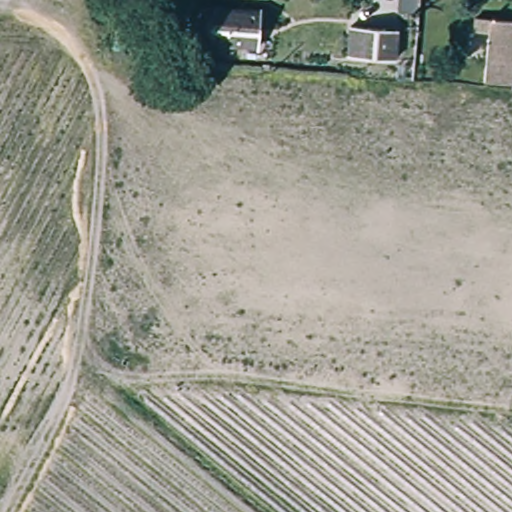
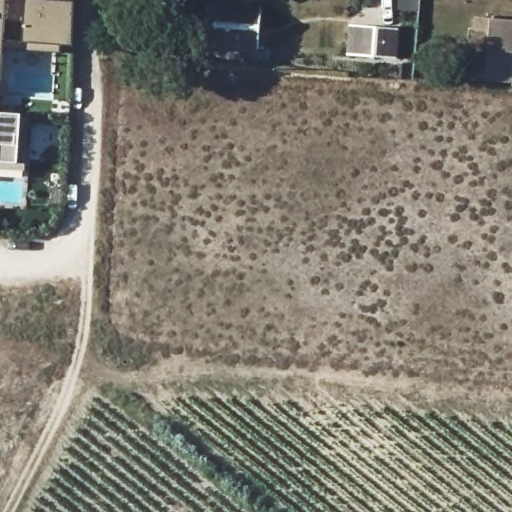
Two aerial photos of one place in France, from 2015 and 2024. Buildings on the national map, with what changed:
new [(37,0),(73,1),(71,46),(61,46),(61,53),(2,50),(0,83),(0,89),(0,0),(37,0)]
demolished [(214,0),(211,11),(195,8),(196,0),(214,0)]
unchanged [(220,6),(267,10),(263,45),(216,41),(220,6)]
unchanged [(512,84),(485,81),(491,19),(512,21),(512,84)]
unchanged [(344,22),(404,21),(403,60),(342,57),(344,22)]
new [(0,170),(0,113),(20,114),(26,116),(23,171),(0,170)]

